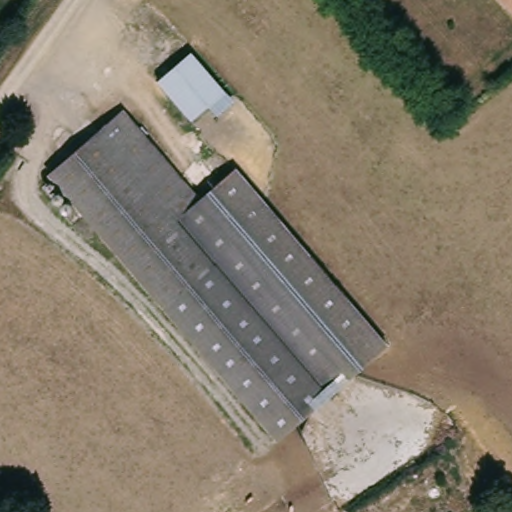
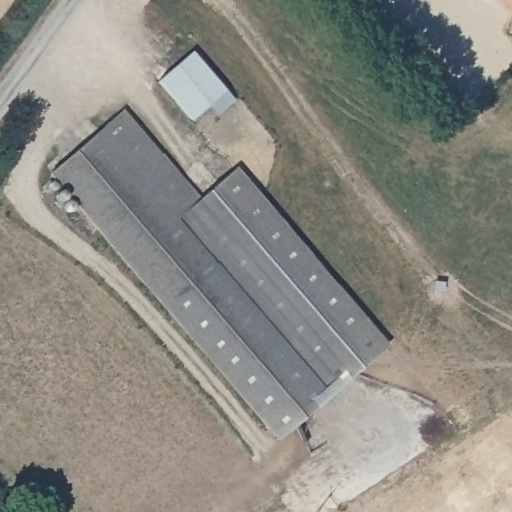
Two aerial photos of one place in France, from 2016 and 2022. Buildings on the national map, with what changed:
unchanged [(501,0),(512,0),(512,13),(501,0)]
unchanged [(230,92),(192,122),(158,81),(195,51),(230,92)]
unchanged [(286,438),(51,170),(124,110),(200,198),(271,278),(357,376),(286,438)]
unchanged [(239,166),(393,344),(357,376),(271,278),(200,198),(239,166)]

